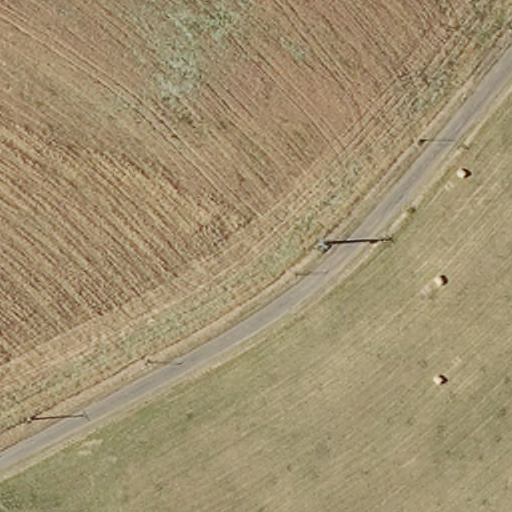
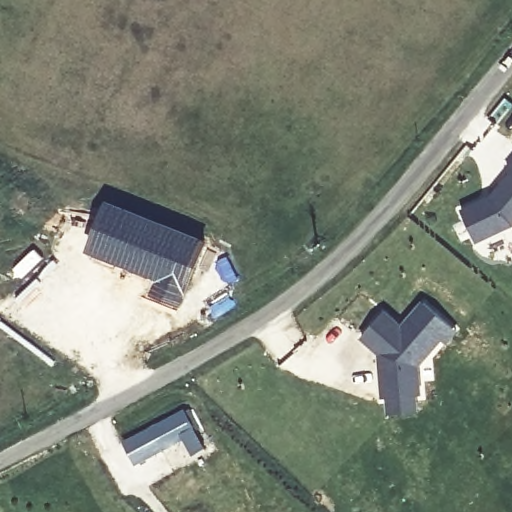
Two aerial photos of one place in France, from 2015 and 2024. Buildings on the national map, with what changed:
new [(512,165),(512,170),(509,168),(512,165)]
new [(478,240),(463,209),(494,194),(512,172),(512,223),(478,240)]
new [(106,198),(208,239),(180,310),(144,295),(152,280),(84,251),(106,198)]
new [(390,412),(388,397),(384,352),(365,337),(387,312),(405,327),(426,301),(454,325),(459,328),(448,341),(444,337),(421,364),(424,393),(425,410),(390,412)]

